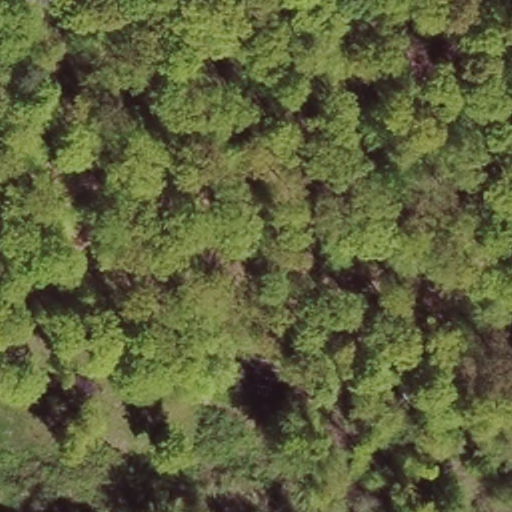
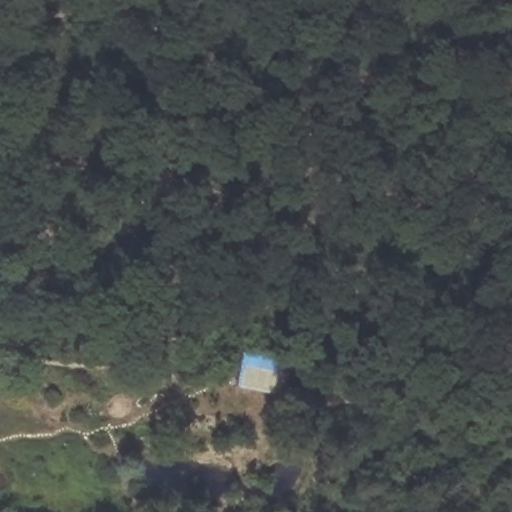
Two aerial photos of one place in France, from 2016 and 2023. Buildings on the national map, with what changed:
unchanged [(237,382),(241,364),(243,354),(290,365),(287,375),(283,392),(237,382)]
unchanged [(426,406),(396,399),(400,385),(430,391),(426,406)]

